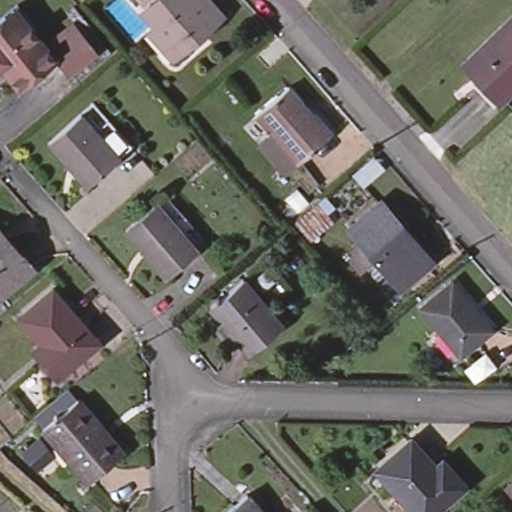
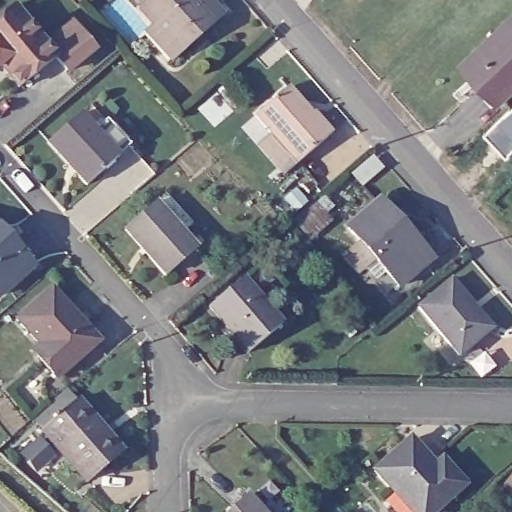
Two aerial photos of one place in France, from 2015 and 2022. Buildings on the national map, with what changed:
unchanged [(148,30),(155,24),(142,9),(153,0),(210,0),(221,13),(213,20),(179,50),(171,56),(148,30)]
unchanged [(0,66),(0,16),(6,11),(19,1),(32,16),(28,20),(47,43),(58,55),(22,85),(11,72),(3,63),(0,66)]
unchanged [(461,64),(512,15),(512,91),(498,105),(461,64)]
unchanged [(75,20),(97,45),(69,70),(58,55),(47,43),(75,20)]
unchanged [(256,149),(270,138),(253,115),(288,89),(311,118),(313,115),(331,139),(325,144),(293,169),(280,179),(256,149)]
new [(485,134),(512,108),(512,150),(505,156),(485,134)]
unchanged [(46,141),(77,112),(91,130),(105,119),(127,145),(115,156),(115,157),(84,185),(72,171),(65,164),(46,141)]
unchanged [(292,217),(298,210),(288,197),(297,185),(309,200),(326,191),(336,200),(327,210),(336,222),(309,239),(292,217)]
unchanged [(122,230),(154,203),(163,195),(188,225),(180,233),(193,250),(162,276),(146,257),(139,249),(122,230)]
unchanged [(387,205),(408,230),(412,227),(442,260),(436,266),(407,291),(377,258),(358,276),(336,251),(355,233),(387,205)]
unchanged [(0,298),(0,230),(11,243),(34,269),(0,298)]
unchanged [(280,322),(248,351),(208,306),(240,277),(280,322)]
unchanged [(489,328),(456,355),(416,306),(448,279),(489,328)]
unchanged [(36,344),(15,318),(50,288),(96,342),(55,378),(39,360),(30,350),(36,344)]
unchanged [(83,481),(39,429),(75,399),(98,428),(100,426),(120,450),(116,454),(83,481)]
unchanged [(392,492),(373,471),(408,440),(423,455),(431,449),(441,460),(447,468),(462,485),(432,512),(395,512),(384,500),(392,492)]
unchanged [(512,476),(512,497),(501,485),(512,476)]
unchanged [(270,512),(223,512),(249,489),(270,512)]

